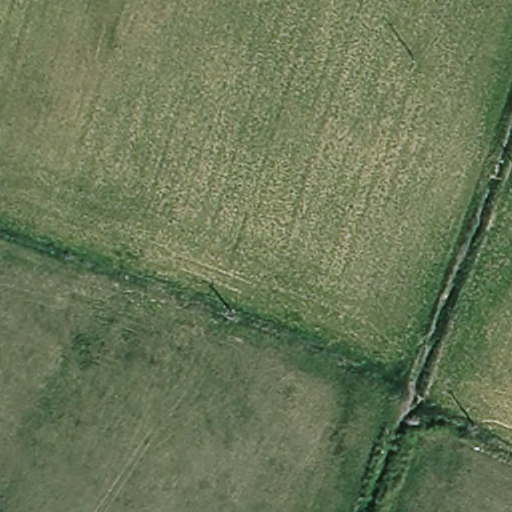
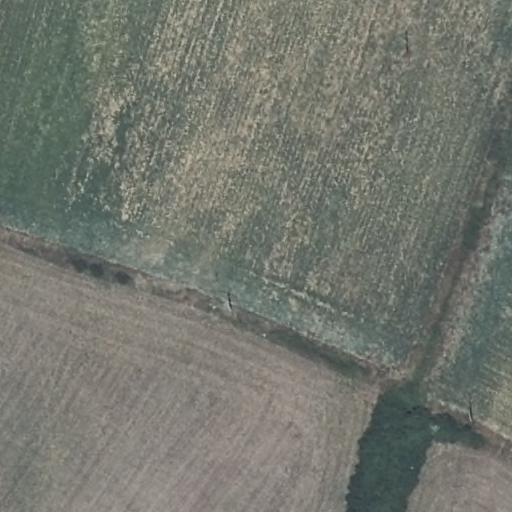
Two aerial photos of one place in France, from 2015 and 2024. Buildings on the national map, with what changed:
[]

